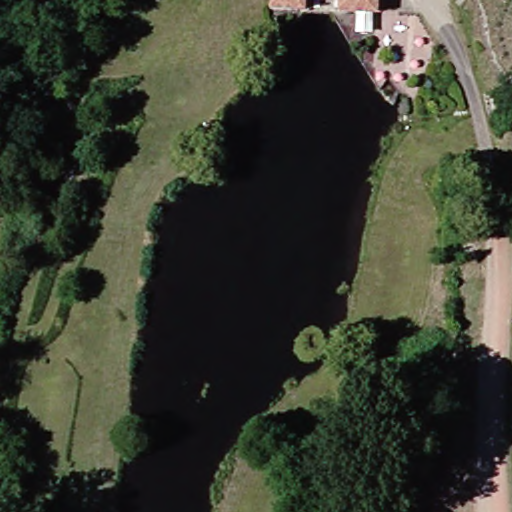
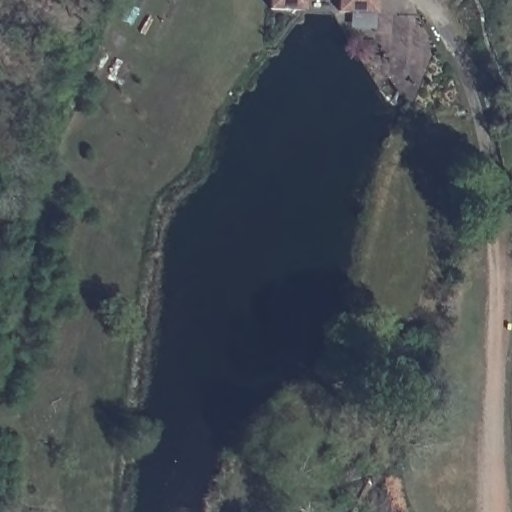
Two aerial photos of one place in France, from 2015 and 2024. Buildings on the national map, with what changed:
unchanged [(289,2),(289,9),(260,7),(259,7),(260,0),(289,0),(289,2)]
unchanged [(363,10),(322,8),(322,0),(364,0),(363,10)]

